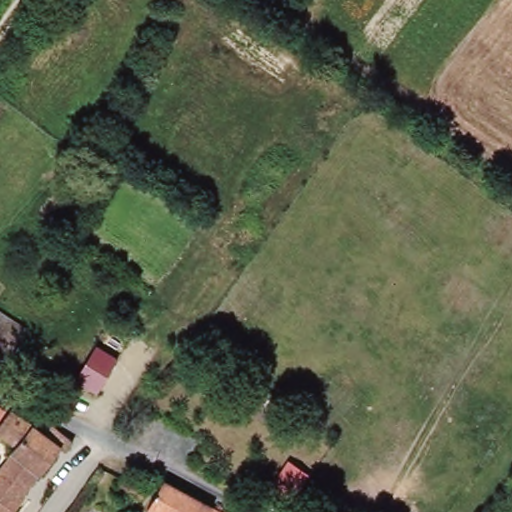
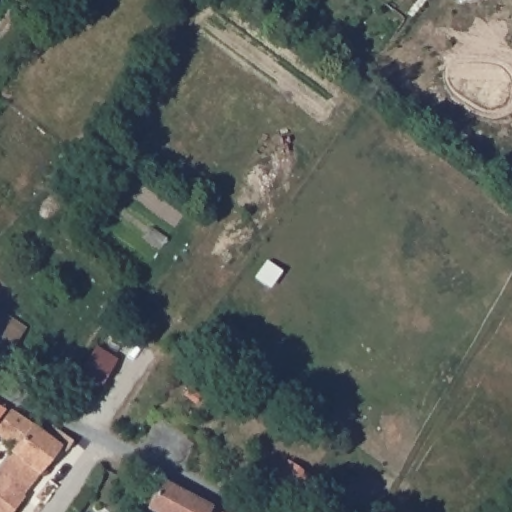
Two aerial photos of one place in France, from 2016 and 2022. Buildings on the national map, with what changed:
unchanged [(7,319),(0,330),(0,314),(7,319)]
unchanged [(97,398),(70,381),(93,343),(117,359),(97,398)]
unchanged [(4,407),(0,411),(0,405),(4,407)]
unchanged [(12,411),(15,407),(45,432),(52,426),(76,440),(66,451),(64,448),(40,472),(10,450),(13,447),(0,434),(0,424),(12,411)]
unchanged [(39,476),(13,512),(0,512),(0,470),(11,454),(39,476)]
unchanged [(121,470),(145,485),(139,496),(115,482),(121,470)]
unchanged [(150,511),(166,485),(215,512),(151,512),(150,511)]

